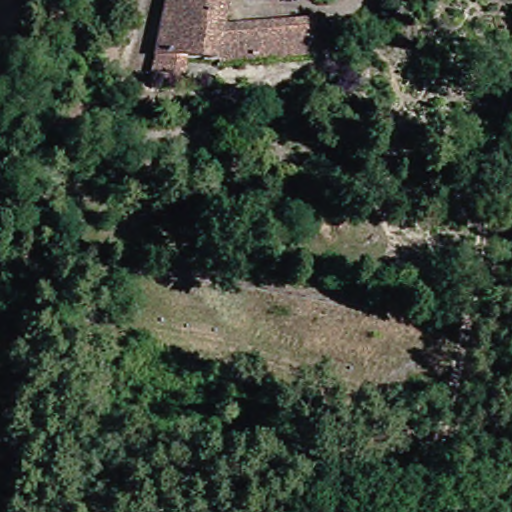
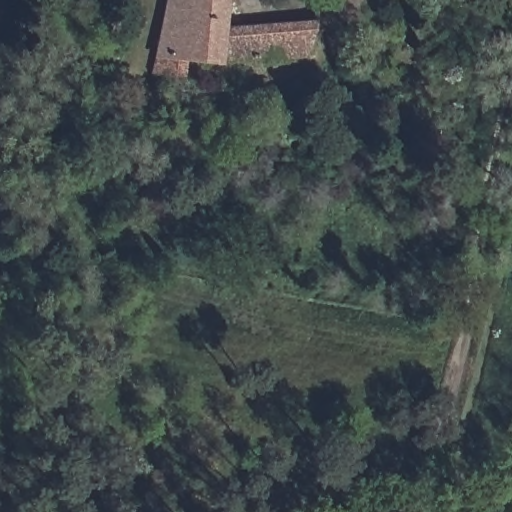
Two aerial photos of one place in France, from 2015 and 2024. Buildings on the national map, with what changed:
unchanged [(154,70),(157,53),(168,0),(239,0),(235,21),(227,61),(186,57),(182,73),(154,70)]
unchanged [(319,55),(227,61),(235,21),(324,24),(319,55)]

